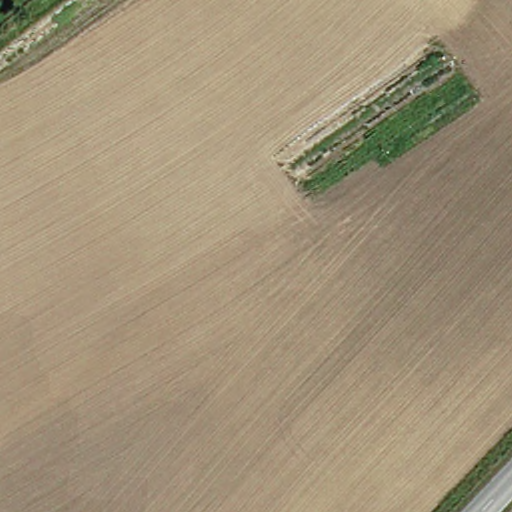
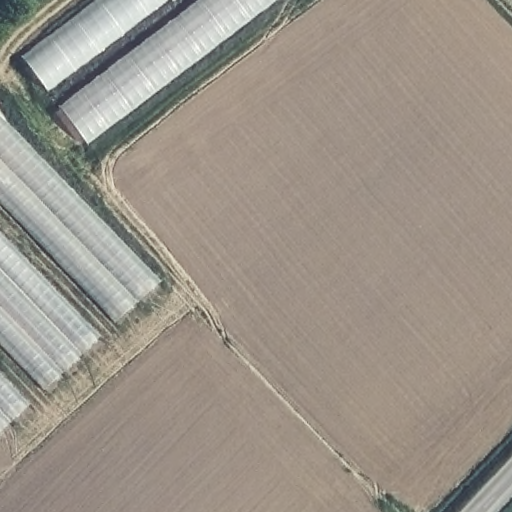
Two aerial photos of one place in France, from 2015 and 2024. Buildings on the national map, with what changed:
new [(98,0),(168,0),(47,93),(22,58),(98,0)]
new [(62,111),(204,0),(278,0),(87,144),(62,111)]
new [(0,203),(0,114),(162,283),(115,324),(0,203)]
new [(0,344),(0,234),(100,337),(45,391),(0,344)]
new [(0,374),(30,405),(0,433),(0,374)]

